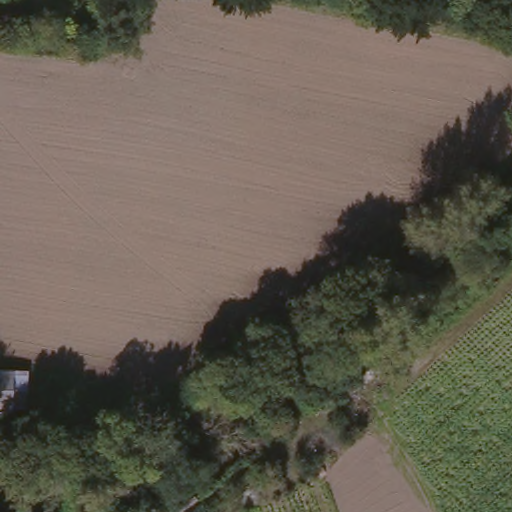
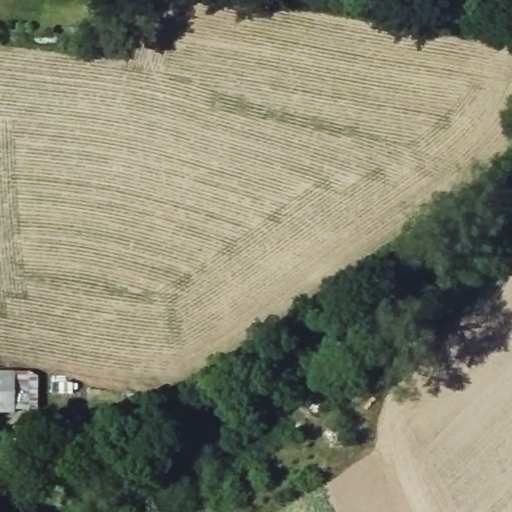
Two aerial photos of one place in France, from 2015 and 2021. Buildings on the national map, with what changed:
unchanged [(24,423),(0,422),(0,375),(26,376),(24,423)]

